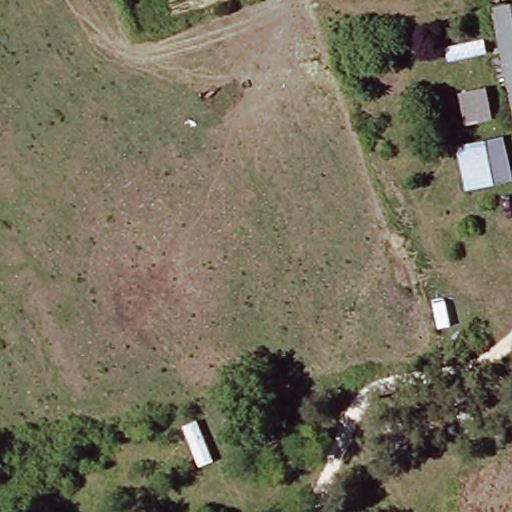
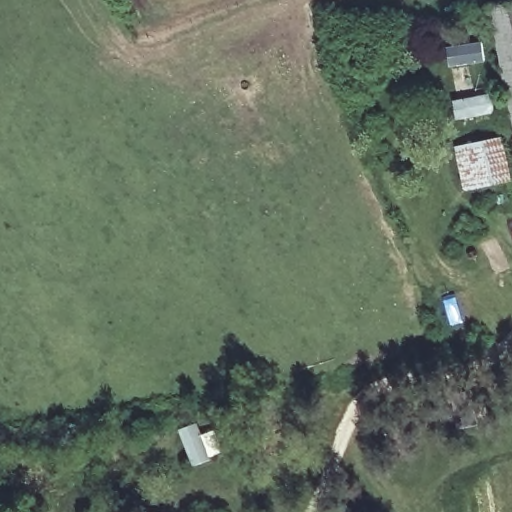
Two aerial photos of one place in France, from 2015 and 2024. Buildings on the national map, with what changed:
unchanged [(492,6),(512,2),(512,113),(492,6)]
unchanged [(484,92),(490,126),(467,130),(460,96),(484,92)]
unchanged [(500,145),(508,188),(461,196),(453,152),(500,145)]

